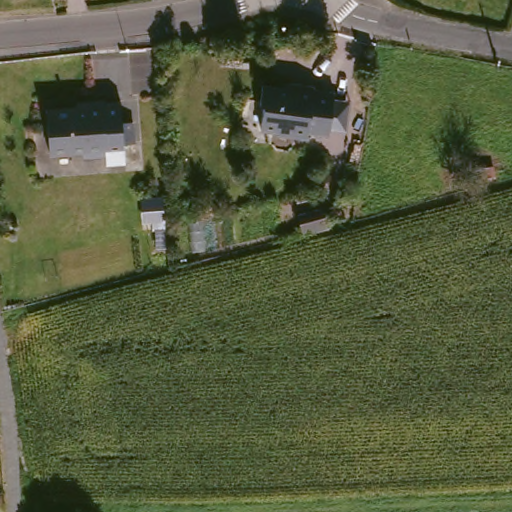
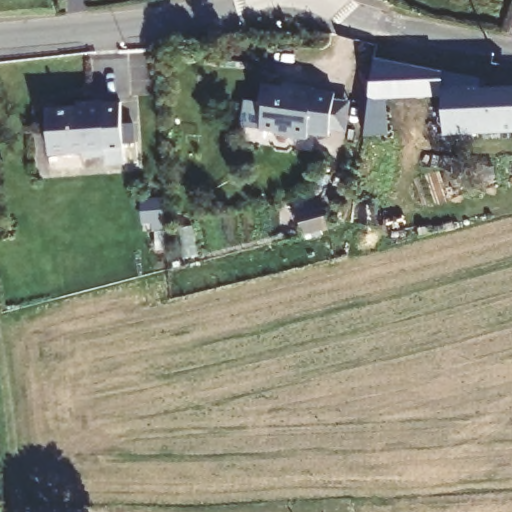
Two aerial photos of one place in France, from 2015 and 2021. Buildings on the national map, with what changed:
new [(373,125),(377,88),(376,60),(438,75),(439,88),(438,94),(392,98),(392,133),(372,133),(373,125)]
unchanged [(333,131),(333,138),(312,135),(311,140),(293,138),(295,132),(282,130),(281,133),(263,131),(267,105),(263,105),(265,86),(285,88),(286,85),(318,89),(317,91),(338,94),(337,100),(354,102),(350,133),(333,131)]
new [(480,95),(512,95),(512,130),(445,131),(444,89),(480,85),(480,95)]
unchanged [(126,119),(137,118),(140,138),(129,140),(131,158),(112,160),(111,152),(89,154),(88,148),(55,152),(50,109),(88,105),(87,99),(106,97),(106,99),(124,97),(126,119)]
unchanged [(336,213),(340,232),(316,238),(311,219),(336,213)]

